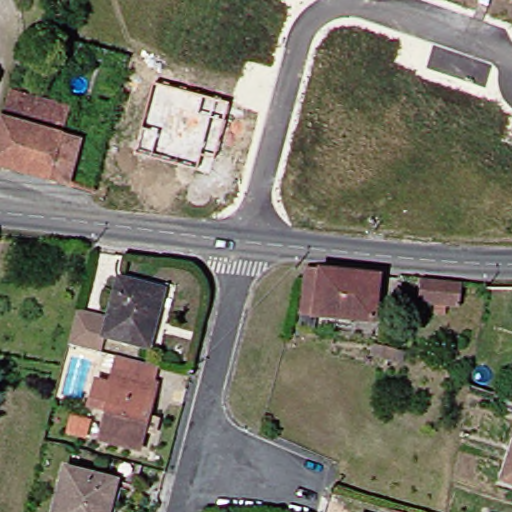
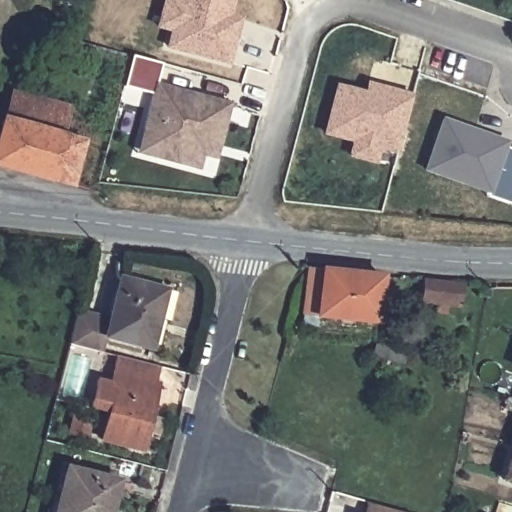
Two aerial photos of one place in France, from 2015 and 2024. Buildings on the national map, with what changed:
new [(229,63),(169,47),(173,30),(158,26),(166,0),(233,0),(229,16),(240,19),(234,45),(229,63)]
unchanged [(127,69),(62,51),(66,39),(130,55),(127,69)]
new [(401,155),(385,151),(381,165),(349,156),(352,143),(325,135),(340,81),(369,89),(371,84),(416,95),(401,155)]
new [(229,104),(215,160),(202,156),(199,171),(134,155),(155,83),(229,104)]
unchanged [(0,164),(0,144),(15,89),(75,105),(67,135),(86,140),(74,186),(0,164)]
new [(490,186),(488,191),(426,170),(443,120),(488,135),(486,140),(512,149),(512,205),(487,196),(490,186)]
new [(507,142),(505,147),(486,140),(488,135),(507,142)]
unchanged [(377,322),(303,315),(310,268),(382,277),(377,322)]
unchanged [(109,332),(123,276),(167,288),(153,347),(110,336),(105,353),(71,345),(77,323),(109,332)]
unchanged [(462,305),(450,305),(450,313),(438,312),(438,303),(421,302),(424,281),(465,285),(462,305)]
unchanged [(480,296),(475,295),(476,291),(481,292),(480,296)]
unchanged [(155,382),(159,383),(155,399),(157,400),(144,450),(105,440),(112,410),(96,405),(103,381),(115,384),(121,357),(158,367),(155,382)]
unchanged [(162,453),(161,456),(155,455),(156,451),(162,453)]
unchanged [(512,459),(512,479),(506,477),(512,459)]
unchanged [(122,478),(114,512),(62,512),(74,466),(122,478)]

